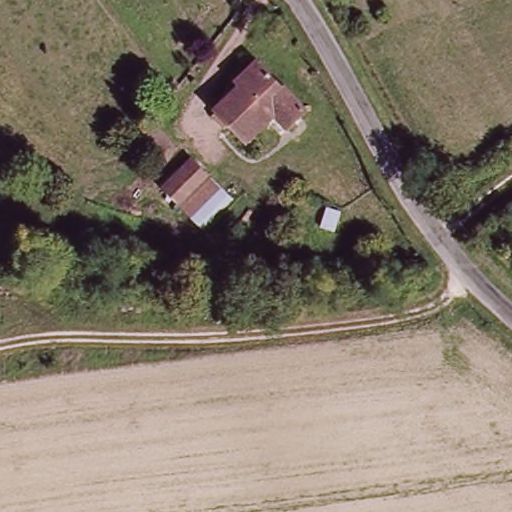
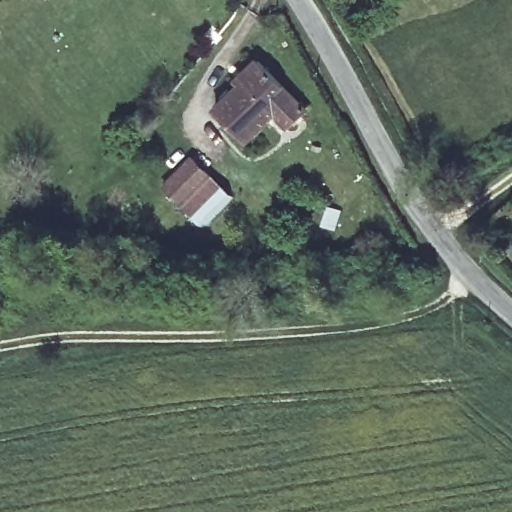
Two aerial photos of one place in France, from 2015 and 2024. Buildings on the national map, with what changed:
unchanged [(231,105),(226,100),(261,65),(310,113),(291,132),(278,120),(250,149),(219,118),(231,105)]
unchanged [(183,210),(165,191),(194,162),(212,181),(183,210)]
unchanged [(203,230),(183,210),(212,181),(232,201),(203,230)]

